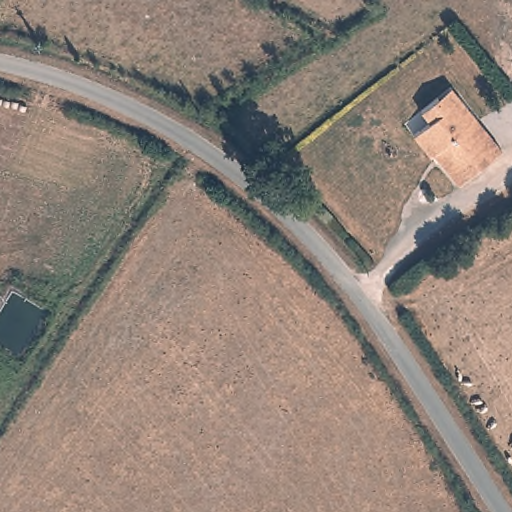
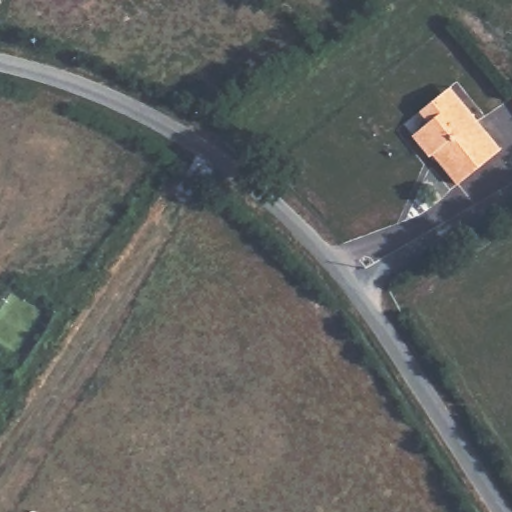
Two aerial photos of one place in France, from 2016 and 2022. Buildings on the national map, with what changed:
unchanged [(453,182),(436,151),(428,155),(417,137),(433,127),(424,110),(443,99),(458,89),(467,102),(499,154),(453,182)]

